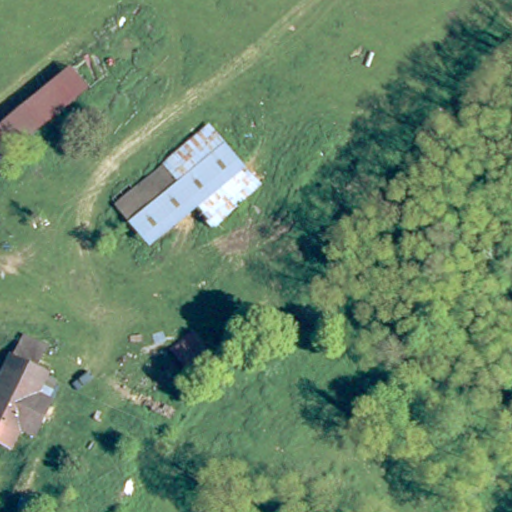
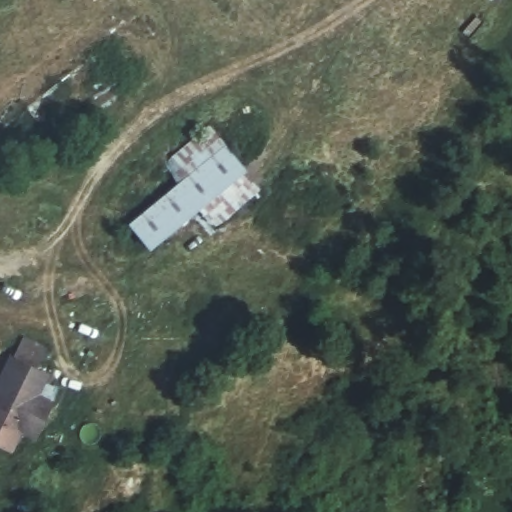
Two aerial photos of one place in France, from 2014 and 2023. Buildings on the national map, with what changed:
unchanged [(0,170),(0,125),(68,68),(92,91),(0,170)]
unchanged [(216,127),(228,146),(183,182),(170,165),(216,127)]
unchanged [(158,245),(137,222),(183,182),(228,146),(247,168),(202,206),(158,245)]
unchanged [(218,225),(202,206),(247,168),(263,187),(218,225)]
unchanged [(52,402),(35,438),(21,431),(11,451),(0,445),(0,384),(13,358),(15,359),(25,338),(47,349),(36,370),(48,376),(39,396),(52,402)]

